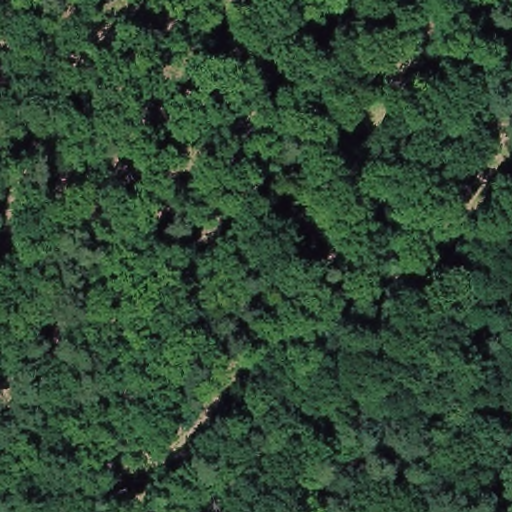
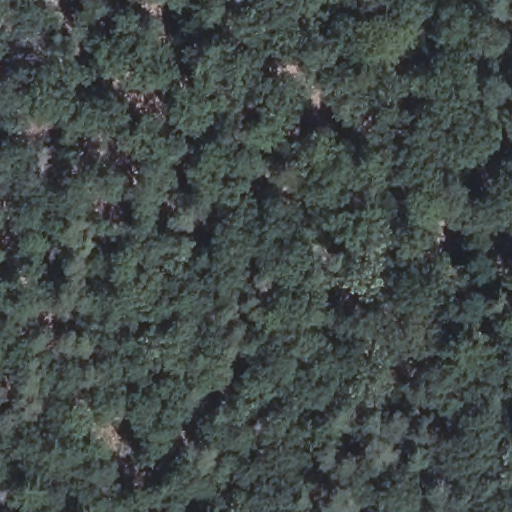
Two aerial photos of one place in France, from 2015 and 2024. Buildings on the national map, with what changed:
[]

